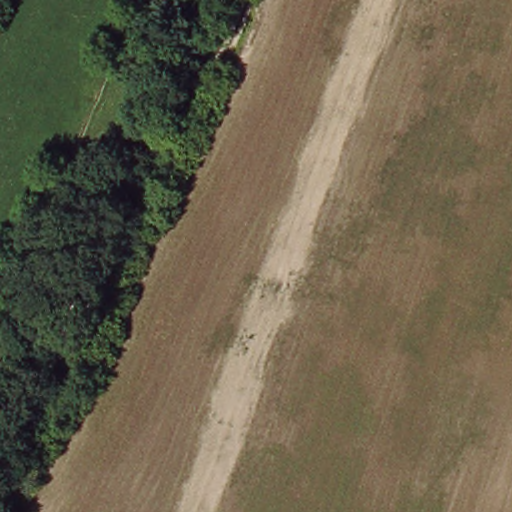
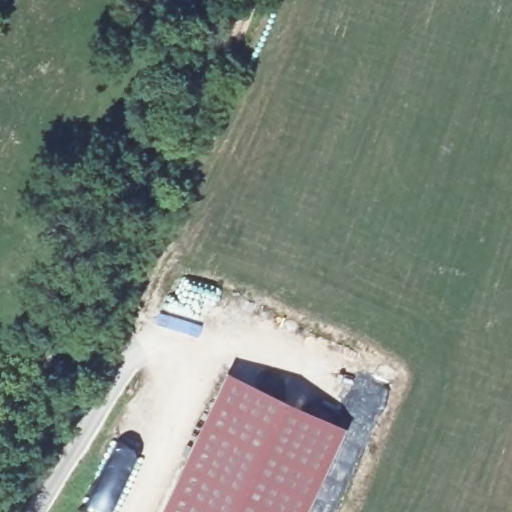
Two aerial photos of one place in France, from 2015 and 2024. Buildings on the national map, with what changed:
new [(162,512),(228,372),(347,428),(308,512),(162,512)]

